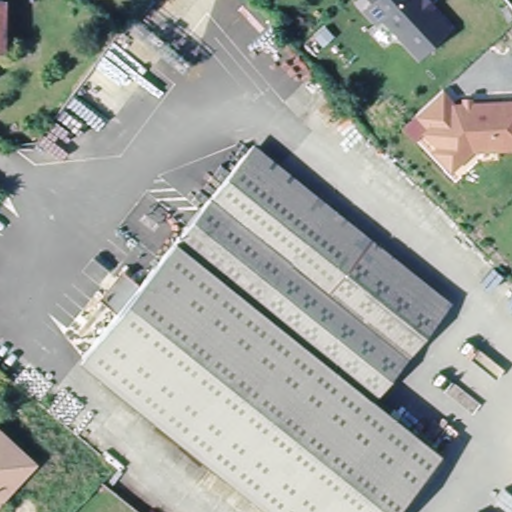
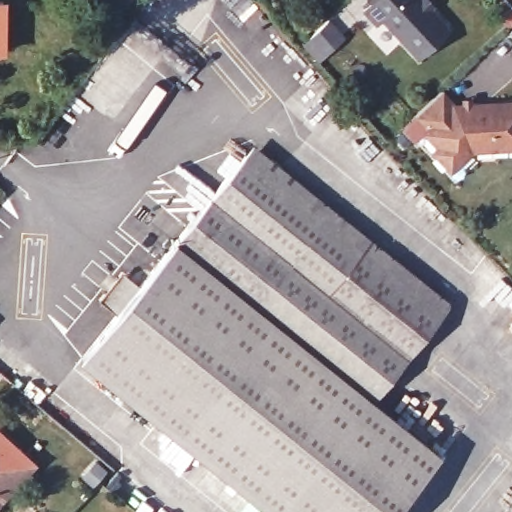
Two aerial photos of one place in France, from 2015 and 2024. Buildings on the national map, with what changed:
unchanged [(425,3),(433,12),(431,15),(450,36),(418,64),(382,25),(377,30),(365,16),(373,8),(366,0),(417,0),(422,6),(425,3)]
unchanged [(7,56),(0,55),(0,6),(8,7),(7,56)]
unchanged [(330,20),(344,36),(324,54),(318,60),(304,44),(310,39),(330,20)]
unchanged [(443,144),(430,129),(434,125),(422,111),(436,98),(446,89),(457,104),(512,101),(512,145),(476,147),(460,162),(455,166),(438,148),(443,144)]
unchanged [(376,400),(445,456),(400,512),(280,512),(87,357),(122,313),(104,300),(127,271),(145,286),(250,155),(447,312),(376,400)]
unchanged [(25,455),(34,463),(0,500),(0,432),(25,455)]

